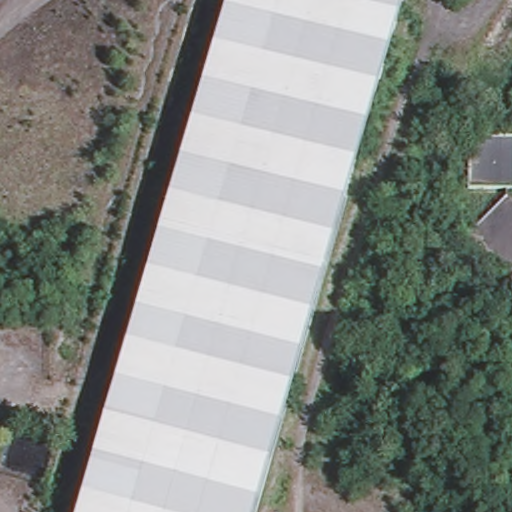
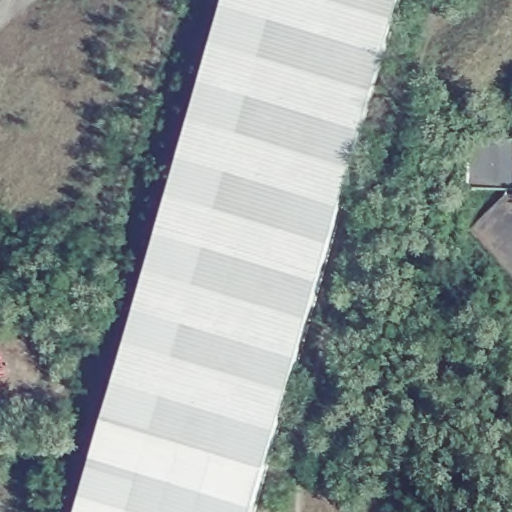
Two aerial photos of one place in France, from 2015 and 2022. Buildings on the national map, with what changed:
unchanged [(252,512),(77,512),(113,383),(133,318),(181,147),(223,0),(400,0),(252,512)]
unchanged [(512,140),(512,190),(467,188),(468,138),(512,140)]

